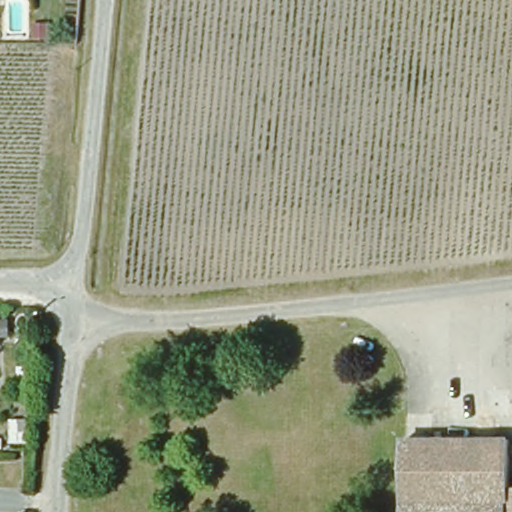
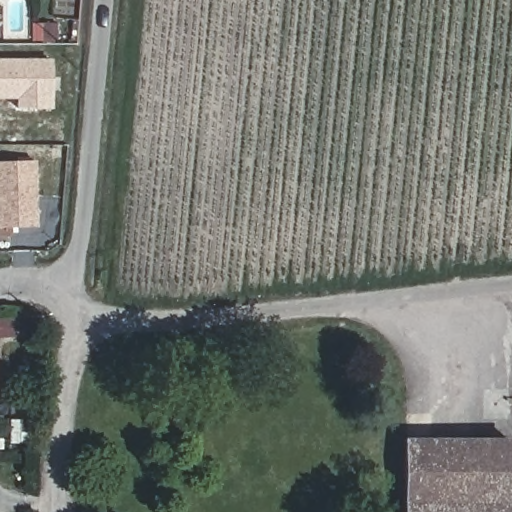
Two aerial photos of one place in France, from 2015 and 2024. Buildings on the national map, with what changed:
new [(32,24),(59,24),(59,42),(32,43),(32,24)]
new [(0,99),(0,59),(51,59),(51,109),(16,109),(16,99),(0,99)]
new [(0,227),(0,161),(35,160),(36,226),(0,227)]
unchanged [(405,446),(512,450),(512,512),(405,512),(405,446)]

